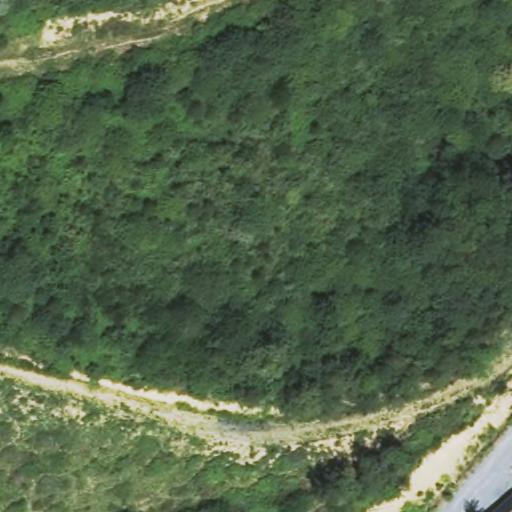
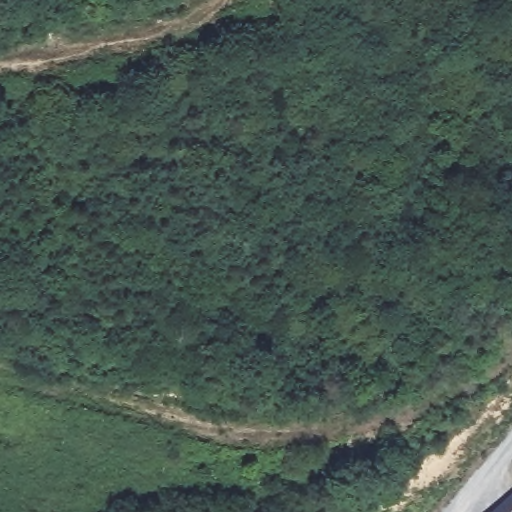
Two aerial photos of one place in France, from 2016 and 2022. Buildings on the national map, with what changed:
unchanged [(512,512),(491,512),(512,493),(512,512)]

